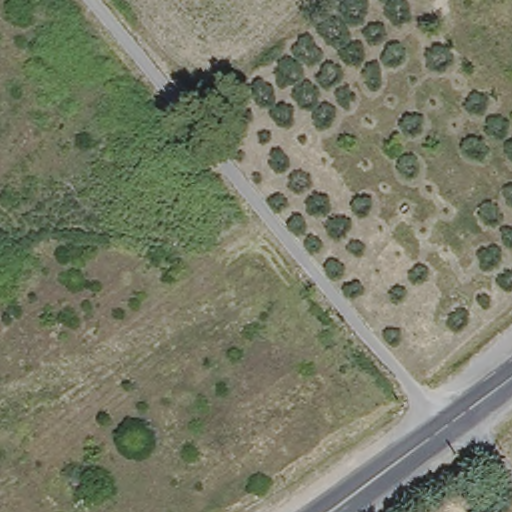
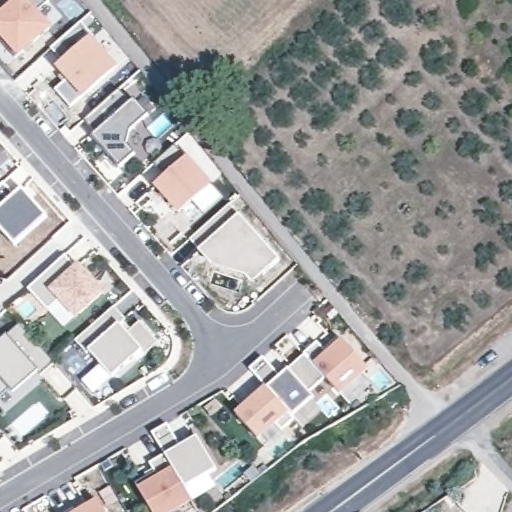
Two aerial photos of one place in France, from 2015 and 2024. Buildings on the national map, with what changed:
new [(53,29),(18,56),(0,34),(0,0),(46,0),(47,1),(38,10),(53,29)]
new [(69,83),(55,69),(61,61),(52,53),(84,27),(93,39),(117,66),(83,98),(71,109),(57,92),(69,83)]
new [(118,89),(130,102),(133,99),(148,115),(130,131),(127,144),(135,154),(120,168),(91,136),(95,133),(84,120),(118,89)]
new [(175,144),(210,184),(179,212),(156,185),(165,177),(153,163),(175,144)]
new [(3,183),(15,194),(18,191),(43,219),(14,245),(0,230),(0,186),(3,183)]
new [(199,250),(190,239),(198,232),(230,204),(279,261),(262,275),(253,264),(243,273),(213,263),(200,249),(199,250)]
new [(65,254),(77,268),(79,265),(103,292),(77,317),(61,299),(49,310),(29,289),(65,254)]
new [(115,307),(125,318),(118,324),(126,332),(138,320),(157,342),(145,354),(140,350),(111,377),(88,351),(85,353),(75,342),(115,307)]
new [(20,323),(55,362),(40,374),(34,367),(0,397),(0,340),(20,323)]
new [(317,342),(324,349),(339,336),(368,369),(340,394),(325,377),(305,354),(304,354),(317,342)]
new [(263,357),(280,376),(305,354),(325,377),(308,393),(313,399),(293,417),(250,369),(263,357)]
new [(266,387),(293,417),(295,419),(281,431),(275,423),(258,439),(236,414),(266,387)]
new [(167,424),(180,446),(197,436),(216,469),(185,488),(165,454),(152,433),(167,424)]
new [(155,472),(150,463),(165,454),(185,488),(192,499),(171,512),(152,512),(135,483),(155,472)]
new [(98,501),(105,512),(78,512),(98,501)]
new [(73,508),(76,512),(67,512),(73,508)]

